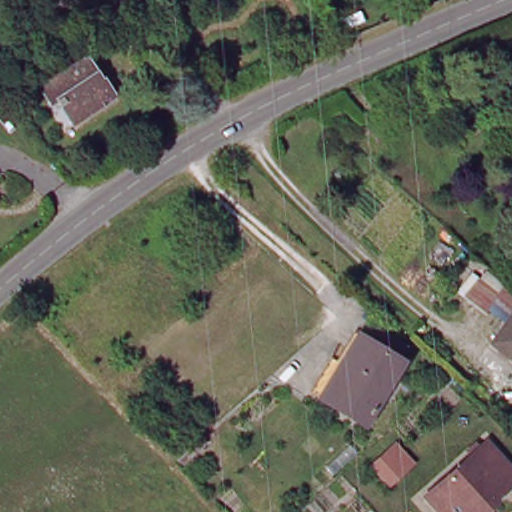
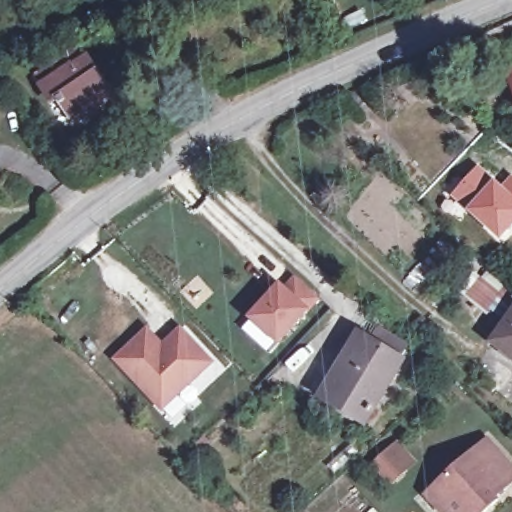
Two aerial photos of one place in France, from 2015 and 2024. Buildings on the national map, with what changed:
unchanged [(104,79),(100,81),(104,86),(110,83),(119,98),(106,106),(109,109),(81,126),(68,105),(60,109),(48,91),(50,89),(43,78),(80,54),(88,66),(94,63),(104,79)]
unchanged [(512,74),(512,79),(510,75),(512,74)]
new [(502,185),(512,173),(512,174),(512,228),(501,241),(452,195),(479,165),(502,185)]
unchanged [(512,310),(504,321),(460,291),(484,261),(512,282),(512,310)]
new [(279,283),(284,288),(296,275),(318,295),(277,339),(251,315),(279,283)]
unchanged [(504,321),(512,310),(512,361),(489,342),(504,321)]
new [(163,412),(114,360),(148,327),(165,344),(183,327),(216,364),(163,412)]
unchanged [(371,430),(326,403),(316,396),(339,360),(349,367),(366,339),(378,346),(386,334),(413,351),(406,364),(411,366),(371,430)]
new [(205,437),(211,443),(198,454),(184,466),(179,460),(193,448),(205,437)]
unchanged [(512,475),(512,487),(504,495),(499,491),(492,499),(495,508),(491,512),(439,512),(428,500),(484,447),(512,475)]
unchanged [(396,456),(412,474),(404,481),(389,494),(373,476),(388,462),(396,456)]

